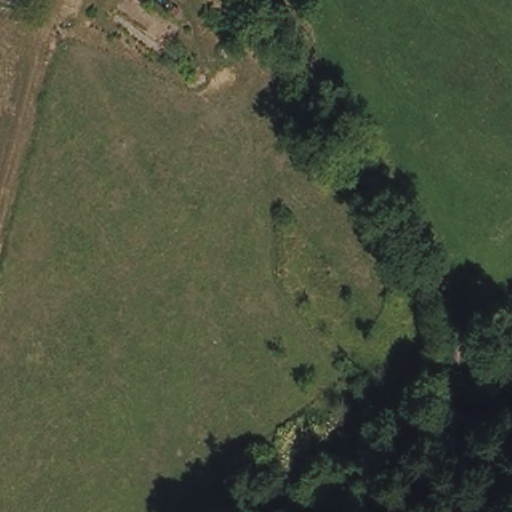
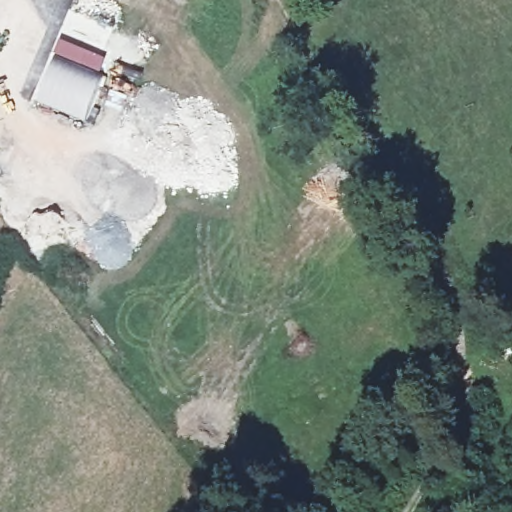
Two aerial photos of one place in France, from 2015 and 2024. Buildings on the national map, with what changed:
new [(85,122),(33,99),(53,55),(59,37),(105,56),(99,74),(103,75),(85,122)]

